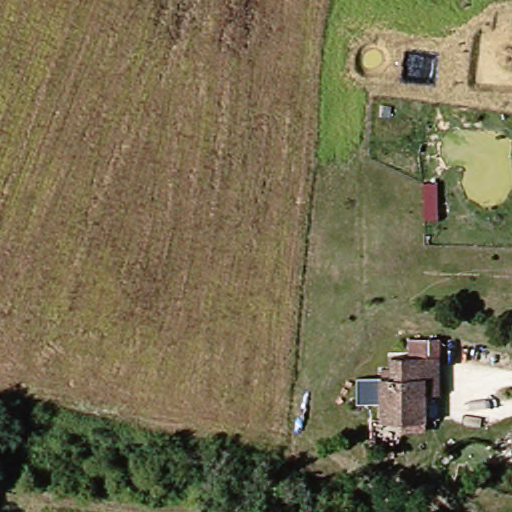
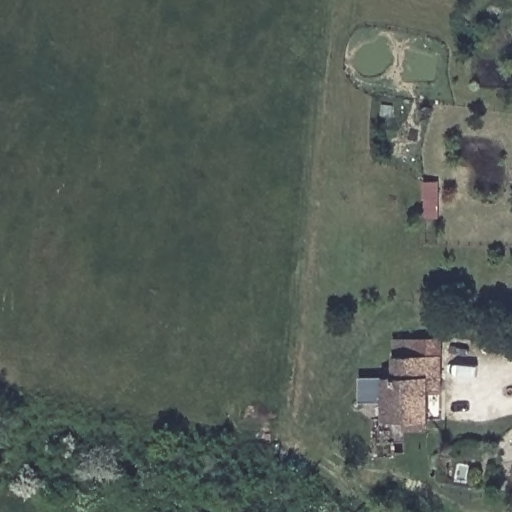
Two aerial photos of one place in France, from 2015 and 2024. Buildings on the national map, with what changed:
unchanged [(432,396),(423,396),(422,424),(381,425),(379,362),(429,360),(432,396)]

